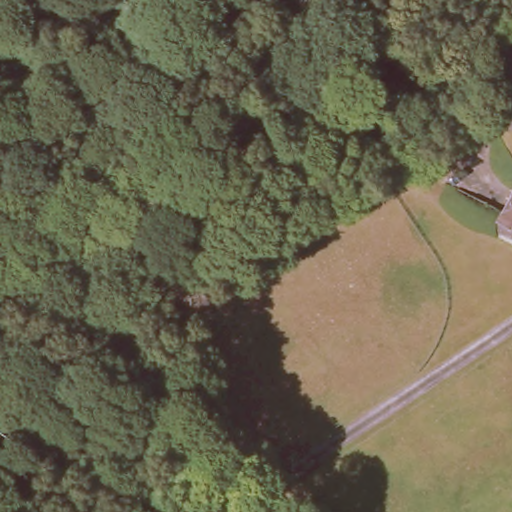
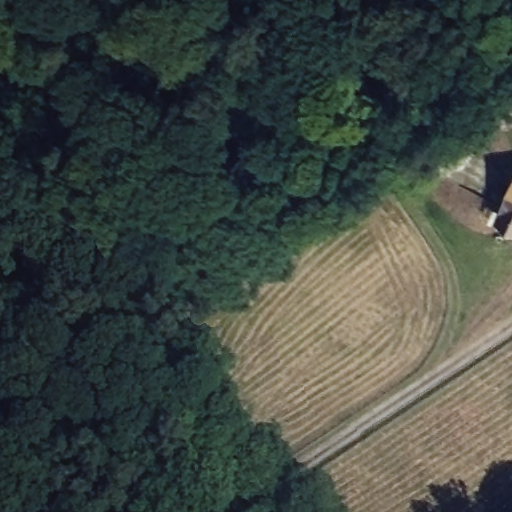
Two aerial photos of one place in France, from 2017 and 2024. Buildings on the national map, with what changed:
unchanged [(512,170),(512,235),(488,224),(512,170)]

